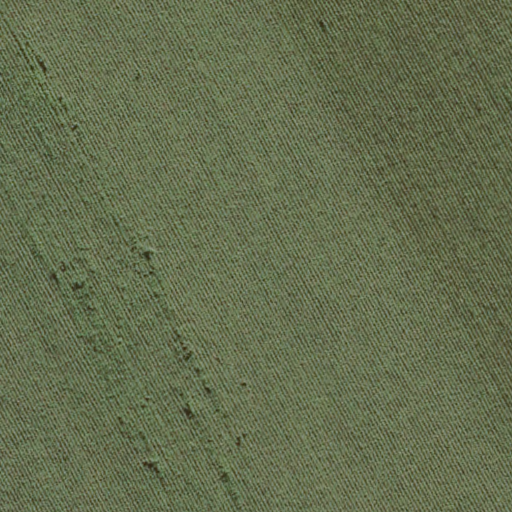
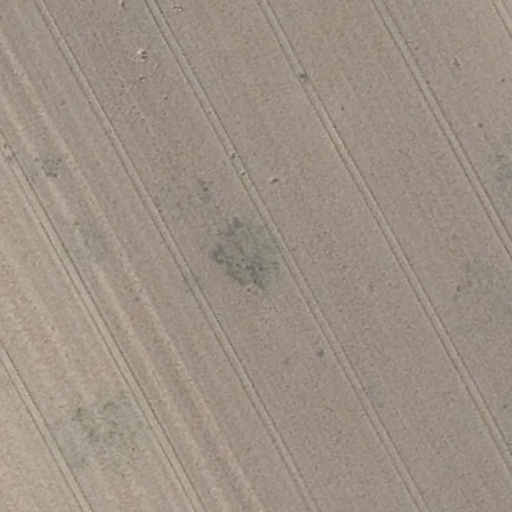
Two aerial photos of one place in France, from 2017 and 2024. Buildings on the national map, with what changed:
[]

